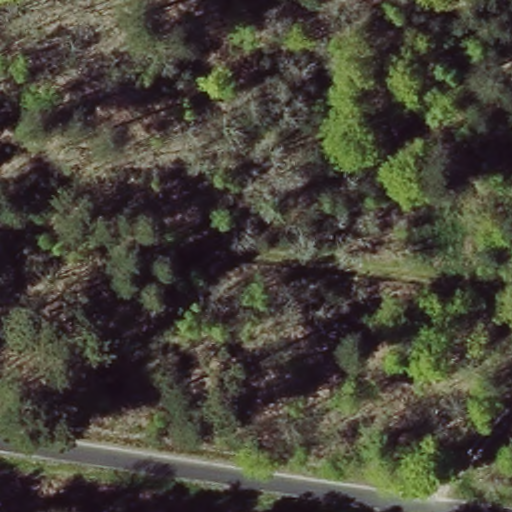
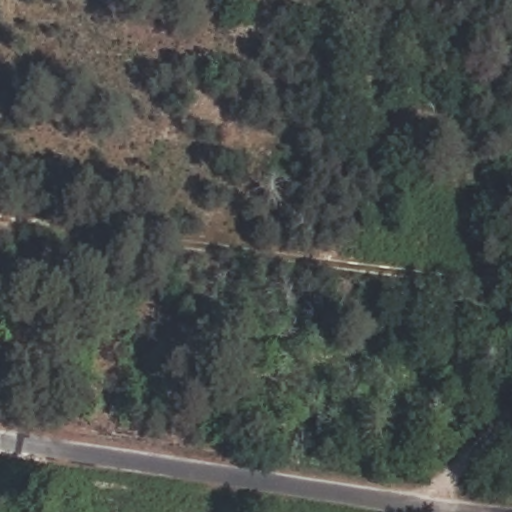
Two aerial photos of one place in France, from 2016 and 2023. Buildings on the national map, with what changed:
[]

